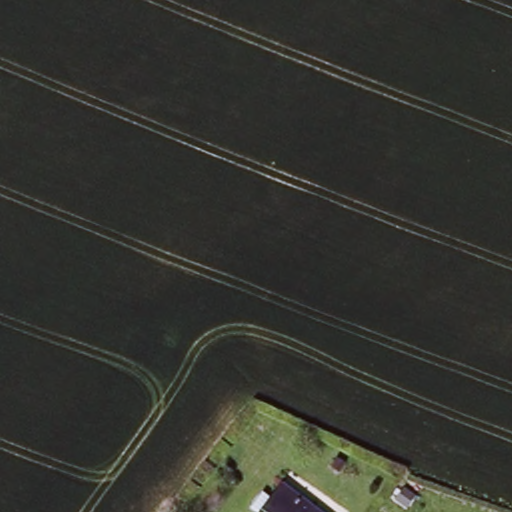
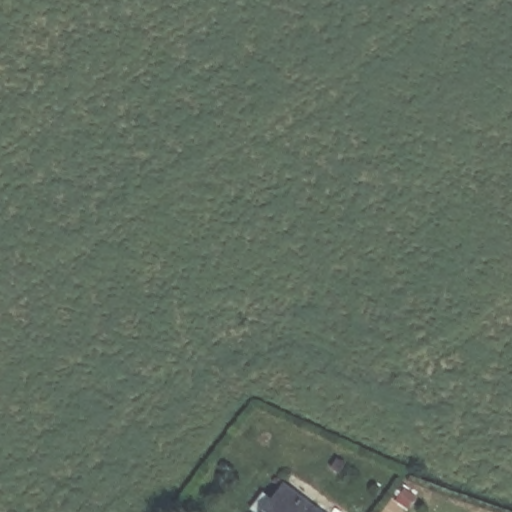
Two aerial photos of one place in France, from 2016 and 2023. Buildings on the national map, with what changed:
unchanged [(322,512),(264,512),(286,484),(322,512)]

